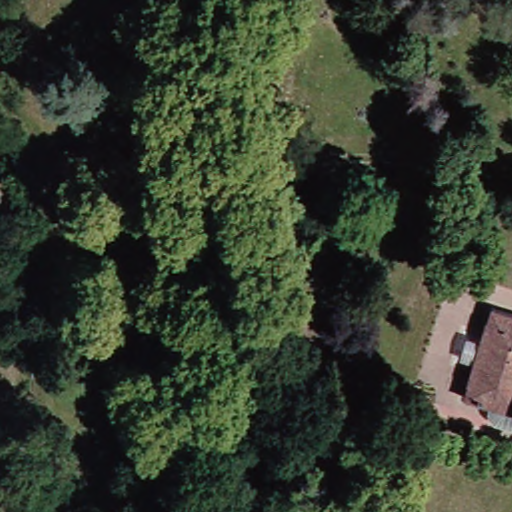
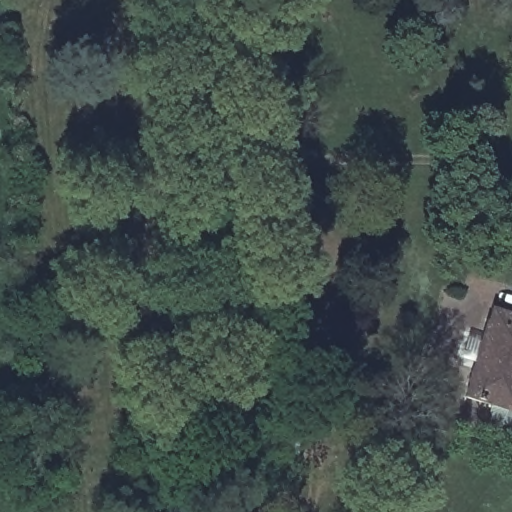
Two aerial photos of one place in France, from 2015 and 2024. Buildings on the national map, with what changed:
unchanged [(472,385),(469,384),(489,322),(491,322),(496,308),(512,313),(512,412),(468,399),(472,385)]

